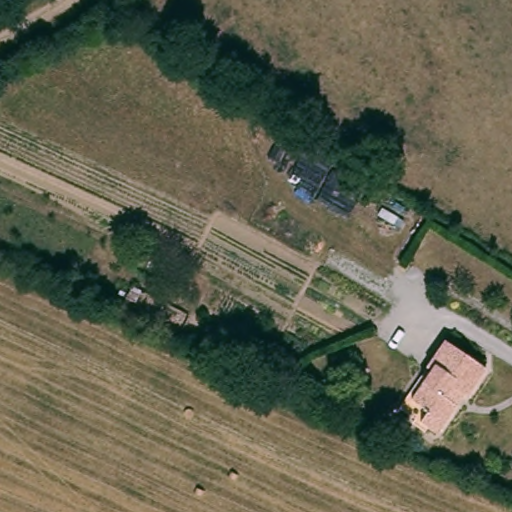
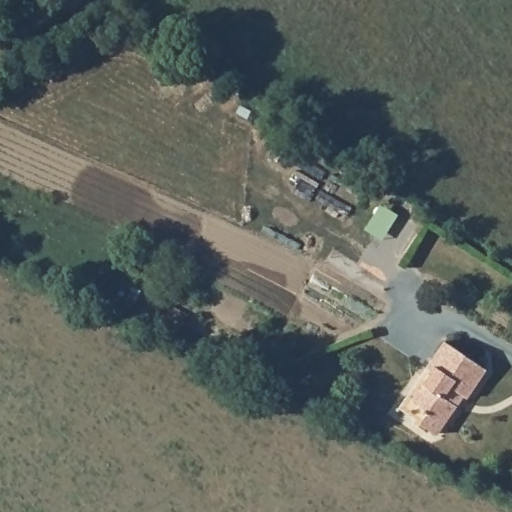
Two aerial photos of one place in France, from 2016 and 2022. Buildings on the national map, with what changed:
unchanged [(491,369),(470,397),(460,388),(451,399),(457,403),(435,432),(417,418),(427,405),(411,391),(450,337),(491,369)]

